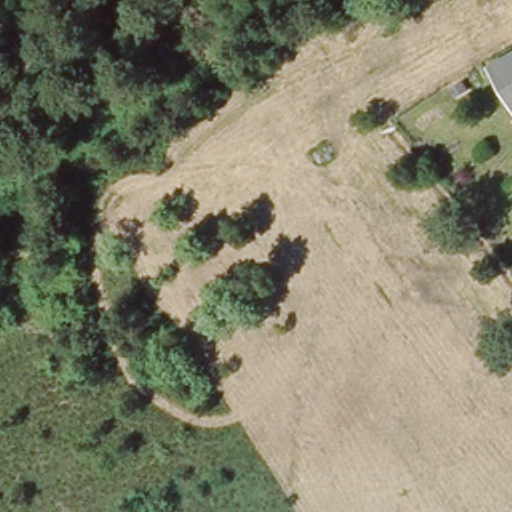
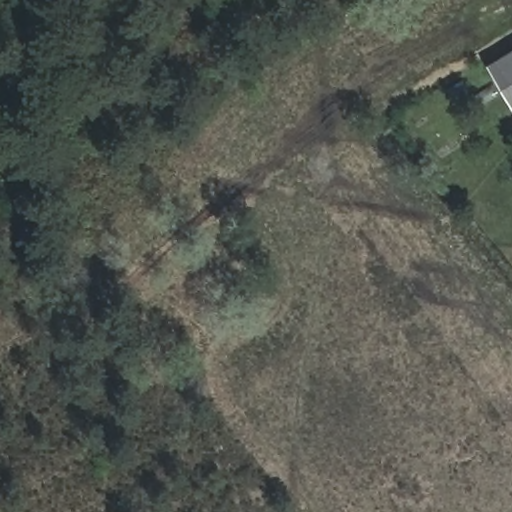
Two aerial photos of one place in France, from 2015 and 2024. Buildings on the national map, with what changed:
unchanged [(492,55),(512,43),(512,89),(492,55)]

